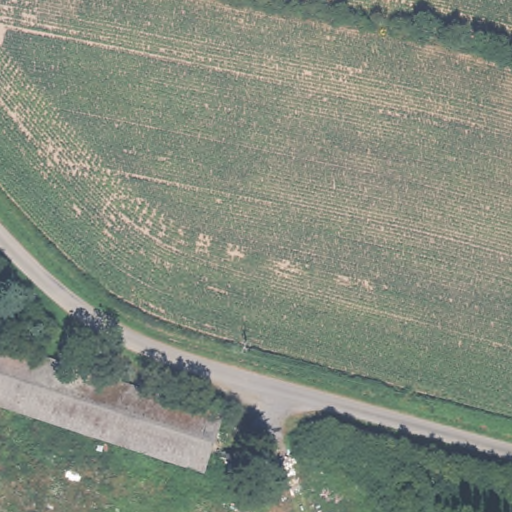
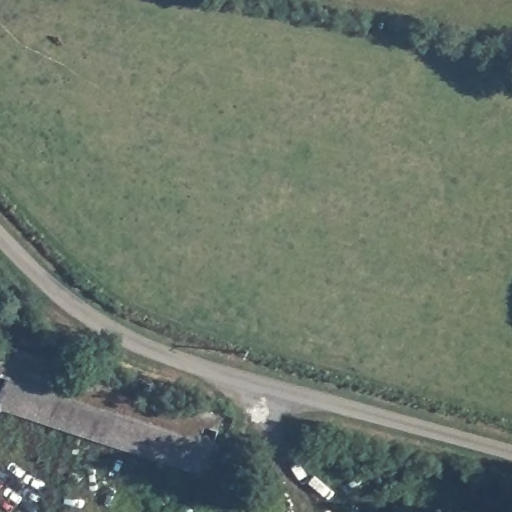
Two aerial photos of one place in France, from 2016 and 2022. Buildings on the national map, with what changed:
unchanged [(75,358),(99,367),(95,379),(222,420),(204,474),(0,409),(0,404),(15,358),(71,370),(75,358)]

